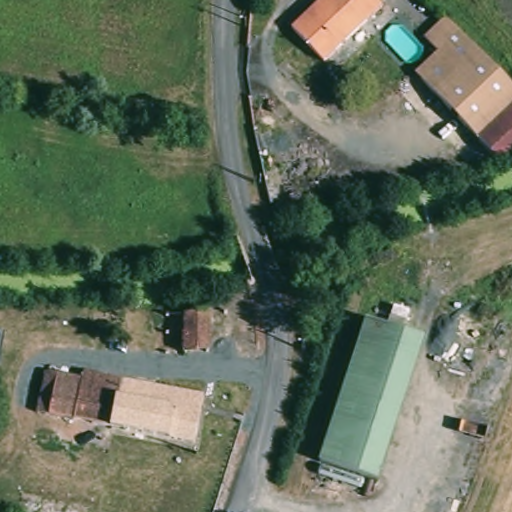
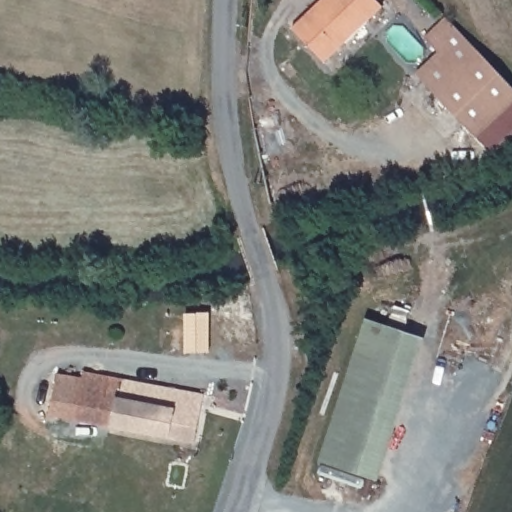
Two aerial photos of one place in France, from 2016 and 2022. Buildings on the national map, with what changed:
unchanged [(328,67),(296,34),(331,0),(375,0),(386,11),(328,67)]
unchanged [(512,88),(512,110),(477,145),(415,83),(436,62),(418,44),(442,19),(512,88)]
unchanged [(494,160),(477,145),(512,110),(512,151),(494,160)]
unchanged [(159,314),(226,311),(226,347),(158,349),(159,314)]
unchanged [(428,337),(379,483),(318,462),(365,316),(428,337)]
unchanged [(40,411),(48,373),(81,380),(84,375),(202,397),(193,443),(109,427),(61,418),(59,415),(40,411)]

